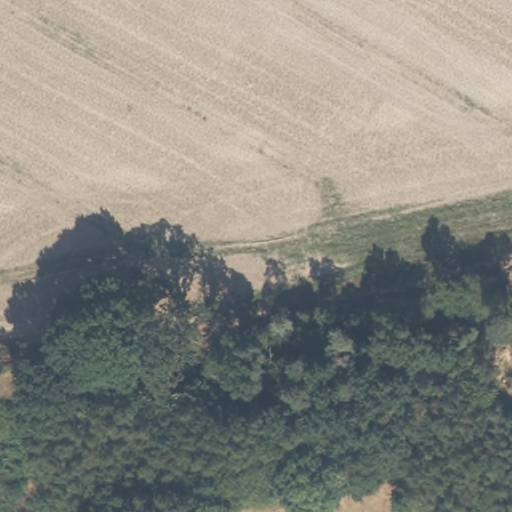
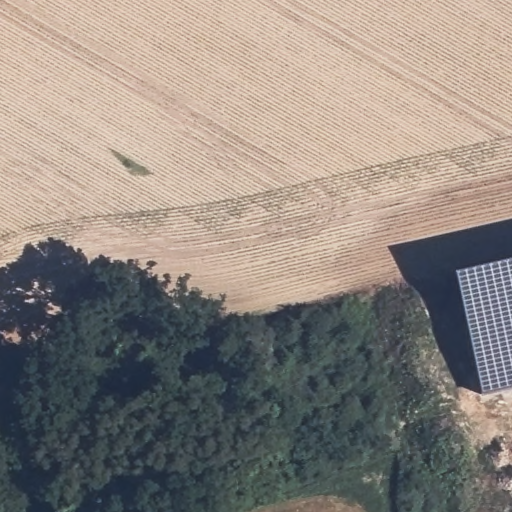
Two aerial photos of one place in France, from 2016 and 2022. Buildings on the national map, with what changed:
new [(453,272),(512,259),(512,389),(484,396),(453,272)]

